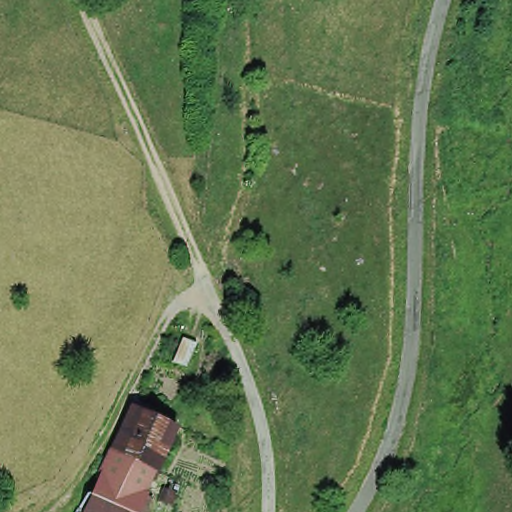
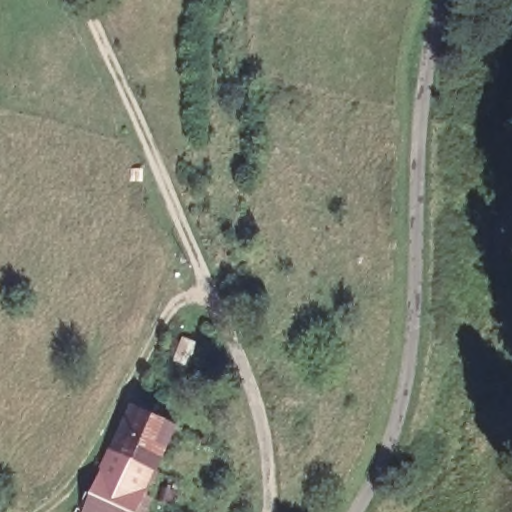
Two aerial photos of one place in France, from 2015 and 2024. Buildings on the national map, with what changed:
unchanged [(181,338),(195,344),(186,369),(171,364),(181,338)]
unchanged [(102,474),(113,449),(134,404),(177,425),(157,467),(160,469),(155,478),(148,475),(145,481),(150,483),(146,493),(151,496),(146,508),(141,506),(138,512),(86,512),(102,474)]

